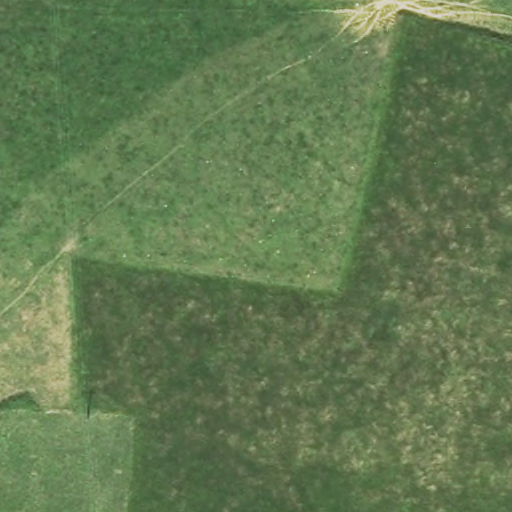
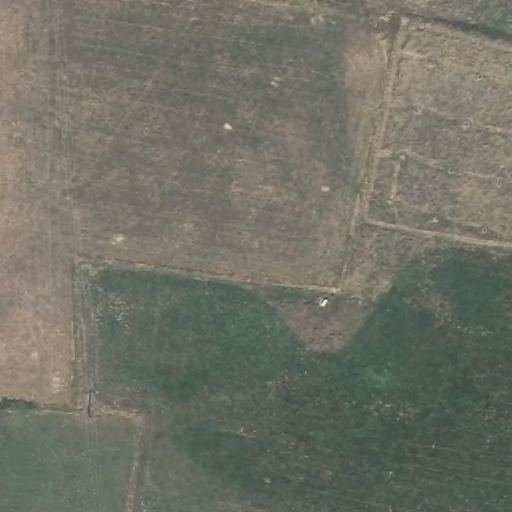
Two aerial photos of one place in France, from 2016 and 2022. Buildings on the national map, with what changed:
[]

